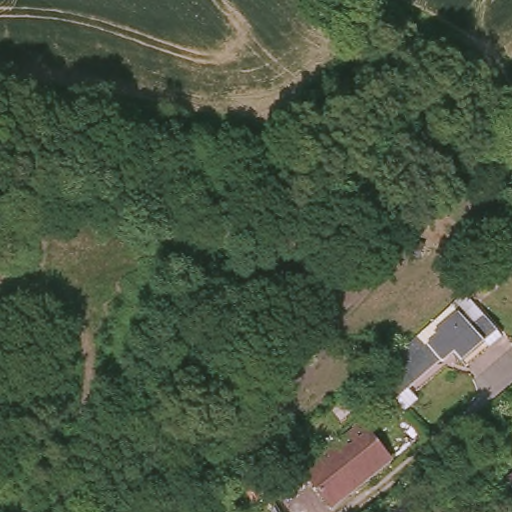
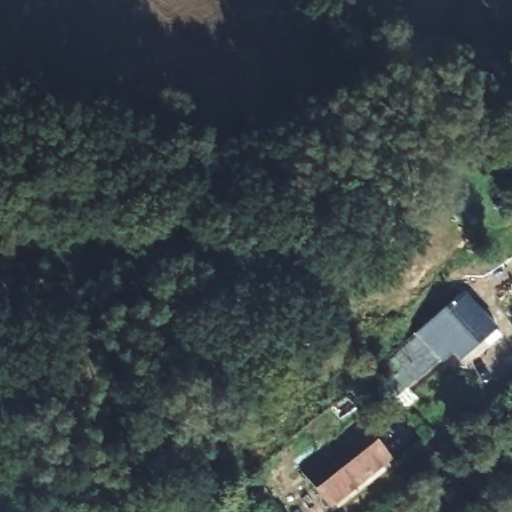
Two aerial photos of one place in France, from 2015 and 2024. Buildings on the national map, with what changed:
unchanged [(375,355),(383,365),(428,326),(425,322),(449,301),(475,330),(451,350),(443,342),(432,352),(431,350),(385,388),(365,365),(375,355)]
unchanged [(392,395),(398,390),(402,395),(396,400),(392,395)]
unchanged [(391,453),(332,500),(321,485),(310,493),(299,480),(305,475),(297,466),(318,448),(321,451),(362,417),(391,453)]

